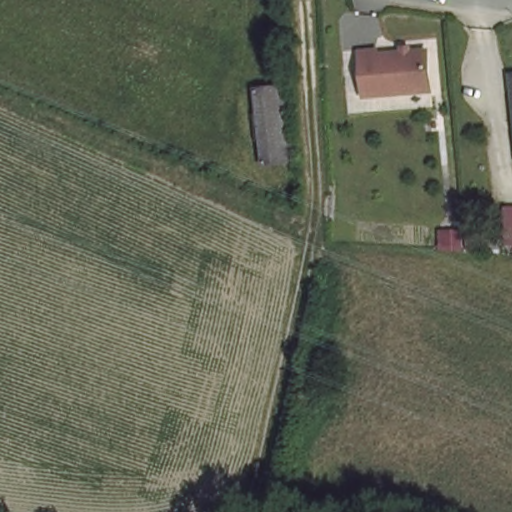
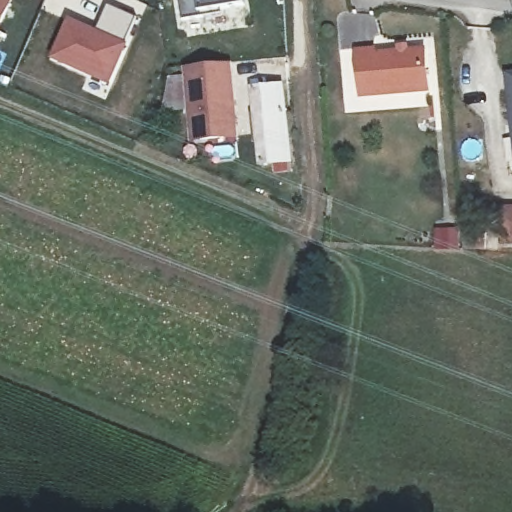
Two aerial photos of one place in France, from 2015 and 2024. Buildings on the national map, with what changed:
new [(0,0),(12,0),(0,26),(0,0)]
new [(193,22),(175,25),(171,0),(234,0),(235,10),(193,16),(212,14),(213,19),(193,22)]
new [(96,28),(107,4),(138,16),(130,43),(110,87),(50,60),(69,16),(71,17),(96,28)]
unchanged [(358,53),(375,51),(376,56),(425,51),(430,92),(363,99),(358,53)]
new [(220,67),(228,140),(186,145),(178,72),(220,67)]
unchanged [(285,155),(256,157),(250,84),(277,82),(285,155)]
unchanged [(511,84),(512,84),(512,96),(511,84)]

